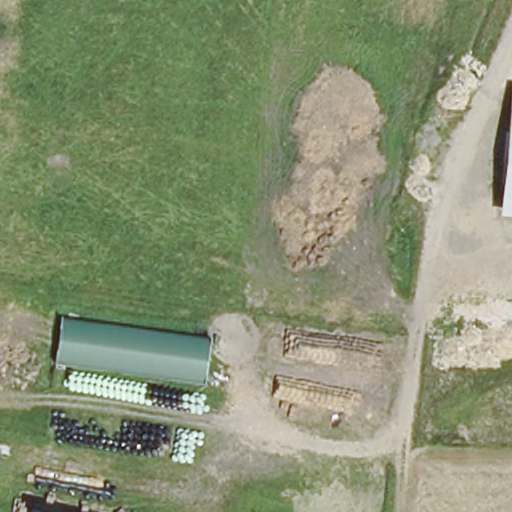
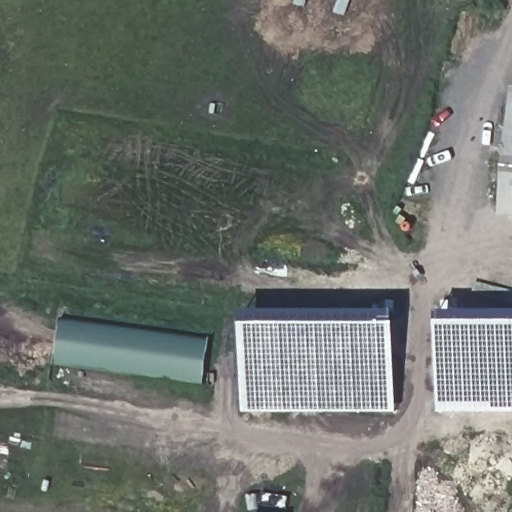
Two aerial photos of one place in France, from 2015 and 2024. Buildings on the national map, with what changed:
unchanged [(500,216),(512,87),(512,217),(500,216)]
new [(243,412),(243,310),(397,310),(397,412),(243,412)]
new [(512,311),(512,412),(437,412),(437,311),(512,311)]
unchanged [(204,383),(55,364),(61,318),(211,339),(204,383)]

